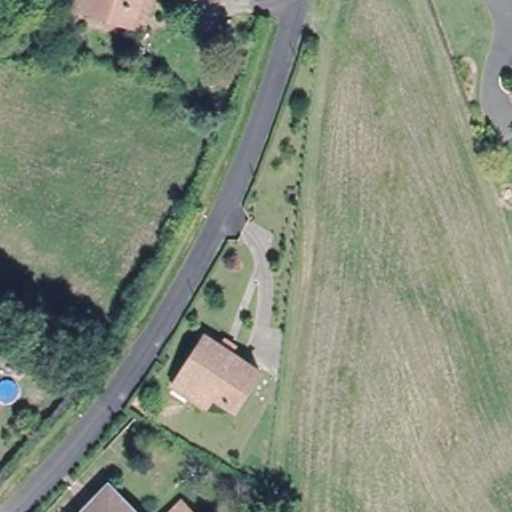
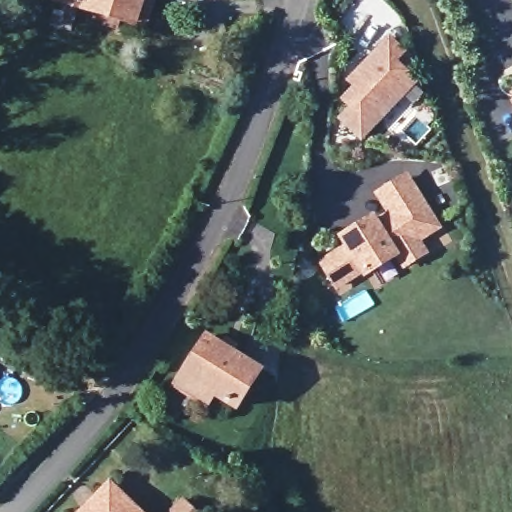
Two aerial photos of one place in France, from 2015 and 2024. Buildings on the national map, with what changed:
unchanged [(101,10),(73,1),(66,24),(45,18),(51,0),(146,0),(140,18),(139,21),(113,13),(111,20),(99,16),(101,10)]
new [(348,100),(360,87),(353,81),(359,76),(393,40),(407,54),(398,63),(419,83),(365,139),(345,120),(356,108),(348,100)]
new [(423,240),(432,254),(404,270),(398,259),(365,278),(363,275),(338,292),(318,259),(343,243),(338,236),(375,214),(377,217),(386,212),(374,192),(409,172),(443,228),(423,240)]
unchanged [(173,381),(179,371),(203,332),(256,366),(232,405),(208,390),(202,400),(173,381)]
unchanged [(112,483),(142,512),(83,512),(112,483)]
unchanged [(183,497),(198,512),(169,512),(183,497)]

